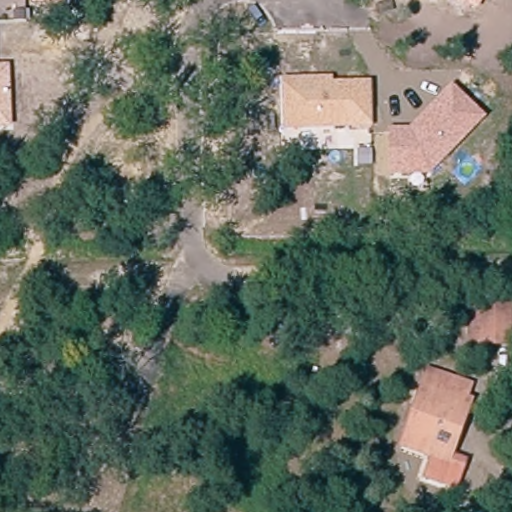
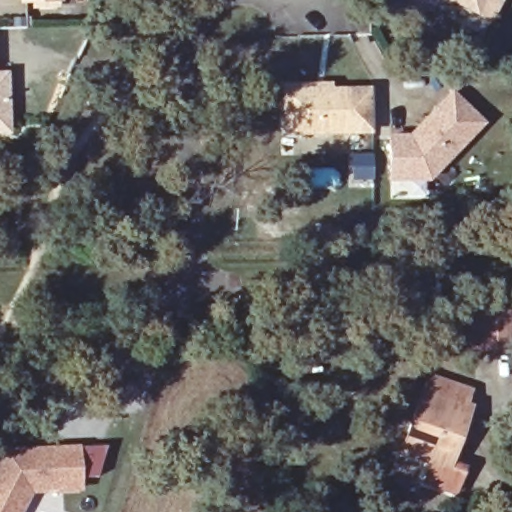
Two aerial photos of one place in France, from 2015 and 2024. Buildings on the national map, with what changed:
unchanged [(61,1),(18,2),(18,0),(61,0),(61,1)]
unchanged [(408,0),(484,0),(476,13),(454,2),(408,4),(408,0)]
unchanged [(0,134),(0,71),(9,71),(11,133),(0,134)]
unchanged [(282,133),(281,82),(332,82),(332,86),(370,85),(371,132),(282,133)]
unchanged [(388,133),(407,132),(450,88),(484,123),(429,180),(388,180),(388,133)]
unchanged [(476,315),(508,314),(509,346),(478,347),(476,315)]
unchanged [(455,469),(446,490),(417,476),(426,456),(397,442),(433,365),(469,382),(446,431),(455,435),(441,463),(455,469)]
new [(70,451),(100,449),(90,480),(72,481),(73,492),(56,493),(24,494),(15,512),(0,512),(0,455),(22,454),(32,453),(70,451)]

